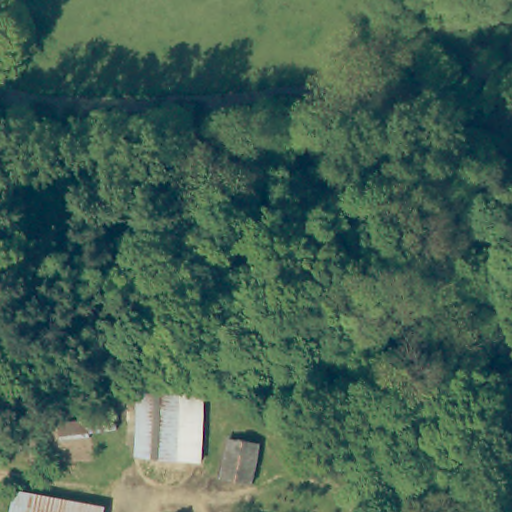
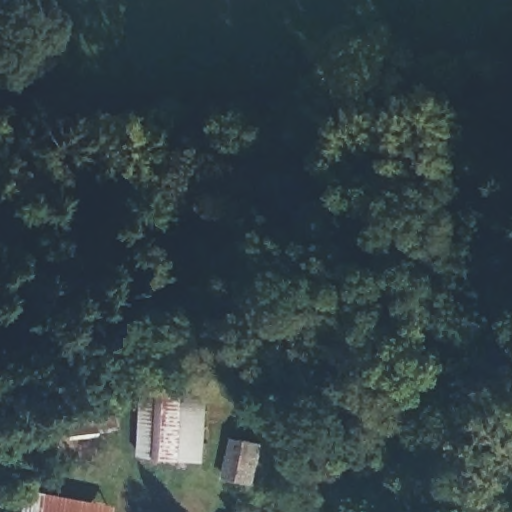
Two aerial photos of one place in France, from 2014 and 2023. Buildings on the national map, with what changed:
unchanged [(177,464),(140,461),(146,382),(145,378),(148,376),(151,377),(185,380),(177,463),(177,464)]
unchanged [(210,383),(202,466),(177,463),(185,380),(210,383)]
unchanged [(90,423),(92,433),(65,438),(63,428),(62,425),(90,423)]
unchanged [(231,438),(260,444),(252,484),(223,477),(231,438)]
unchanged [(107,512),(16,512),(19,495),(107,512)]

